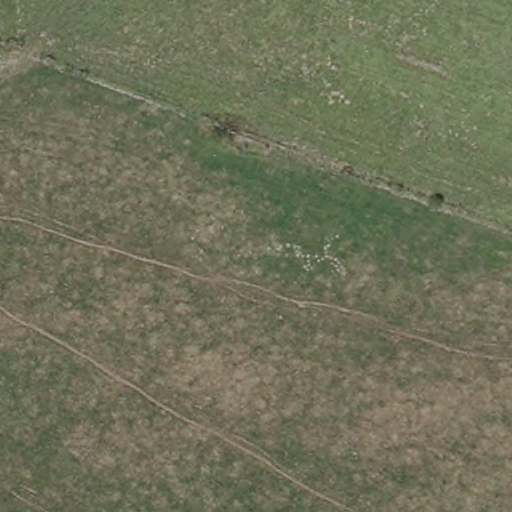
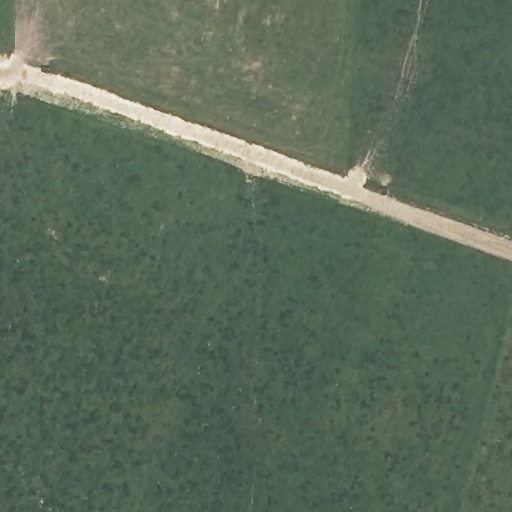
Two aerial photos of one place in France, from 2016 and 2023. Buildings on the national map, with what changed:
[]

